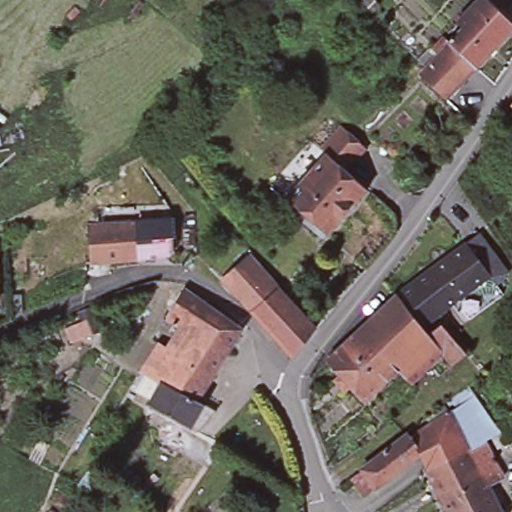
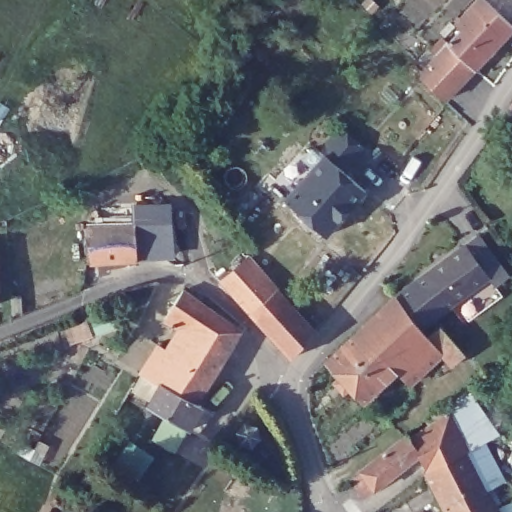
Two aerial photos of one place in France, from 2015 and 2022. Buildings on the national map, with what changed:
unchanged [(462,28),(456,22),(477,0),(486,0),(512,25),(512,29),(475,67),(450,44),(448,42),(462,28)]
unchanged [(475,67),(445,100),(418,75),(425,69),(417,62),(430,49),(437,56),(450,44),(475,67)]
unchanged [(510,105),(512,102),(512,107),(511,107),(510,105)]
unchanged [(326,236),(285,199),(325,154),(323,151),(342,129),(364,147),(343,170),(367,190),(326,236)]
unchanged [(134,207),(167,207),(170,211),(170,221),(172,255),(138,257),(138,260),(90,264),(87,226),(135,222),(134,207)]
unchanged [(434,318),(421,327),(396,296),(465,245),(478,235),(507,275),(495,284),(502,295),(468,320),(455,302),(434,318)]
unchanged [(249,257),(277,289),(250,313),(221,281),(249,257)]
unchanged [(160,384),(139,374),(156,346),(166,352),(181,329),(166,317),(185,289),(242,331),(197,402),(160,384)]
unchanged [(277,289),(315,331),(291,357),(250,313),(277,289)]
unchanged [(465,354),(452,366),(441,354),(410,383),(397,371),(360,330),(394,298),(396,296),(421,327),(427,336),(440,326),(465,354)]
unchanged [(92,307),(101,332),(85,338),(76,313),(92,307)]
unchanged [(325,361),(360,330),(397,371),(363,402),(350,387),(343,393),(333,382),(340,376),(325,361)]
unchanged [(199,433),(190,428),(147,407),(160,384),(197,402),(203,406),(215,412),(199,433)]
unchanged [(492,485),(501,502),(496,504),(500,512),(446,512),(426,472),(426,470),(418,456),(406,441),(430,425),(426,420),(443,405),(449,413),(475,396),(485,412),(483,414),(495,436),(483,442),(502,480),(492,485)]
unchanged [(508,433),(512,431),(512,439),(508,433)]
unchanged [(360,470),(403,437),(406,441),(418,456),(375,490),(365,498),(351,481),(362,473),(360,470)]

